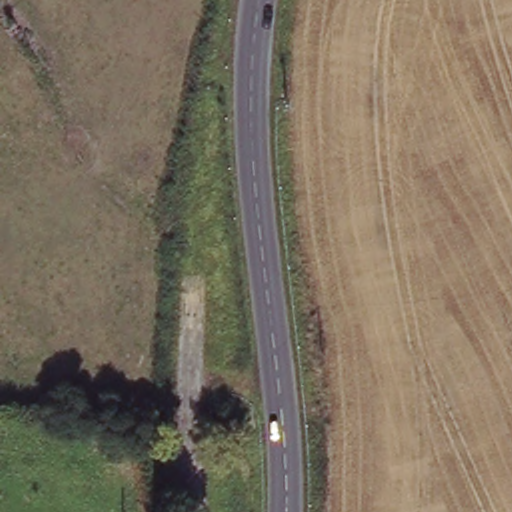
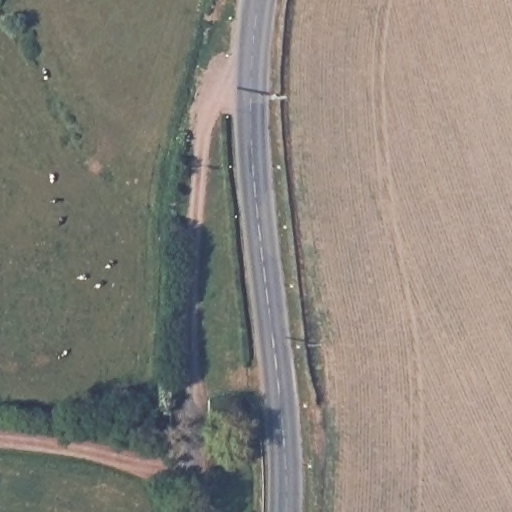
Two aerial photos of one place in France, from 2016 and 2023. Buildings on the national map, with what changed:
unchanged [(230,350),(240,349),(239,360),(229,360),(230,350)]

